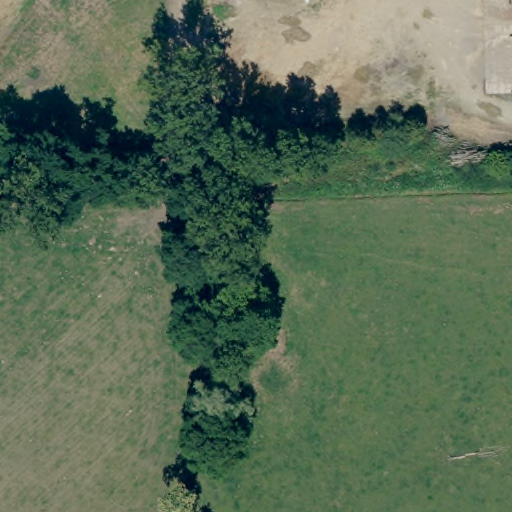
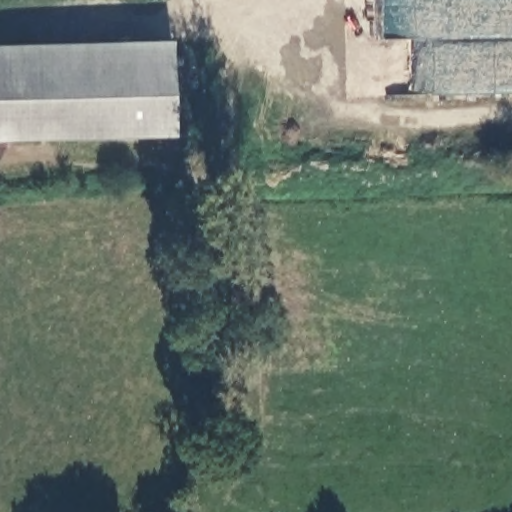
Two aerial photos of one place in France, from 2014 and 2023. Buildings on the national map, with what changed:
new [(173,40),(176,137),(0,144),(0,45),(173,40)]

